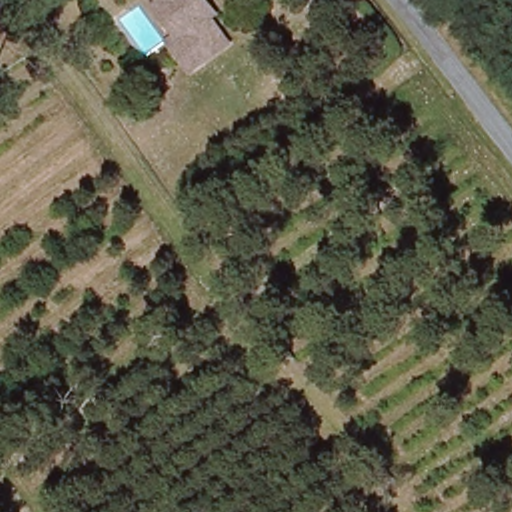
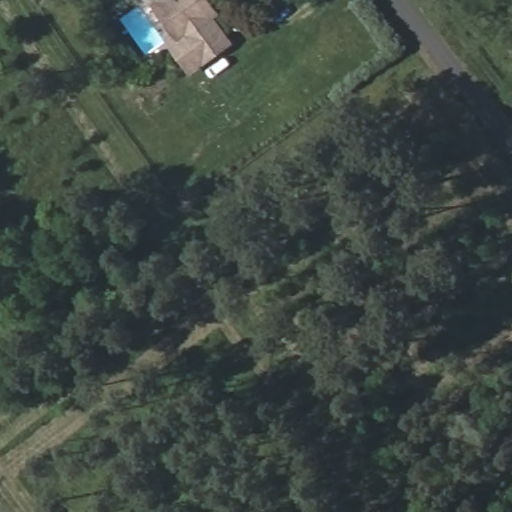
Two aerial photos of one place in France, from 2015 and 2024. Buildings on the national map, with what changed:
unchanged [(208,63),(195,73),(176,49),(184,43),(162,16),(171,9),(164,0),(210,0),(215,6),(206,12),(221,32),(231,45),(208,63)]

